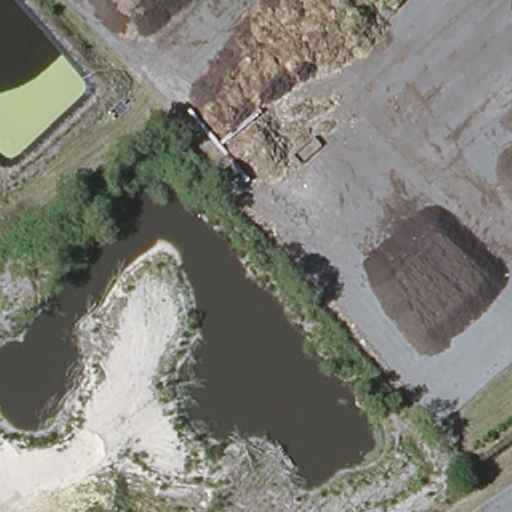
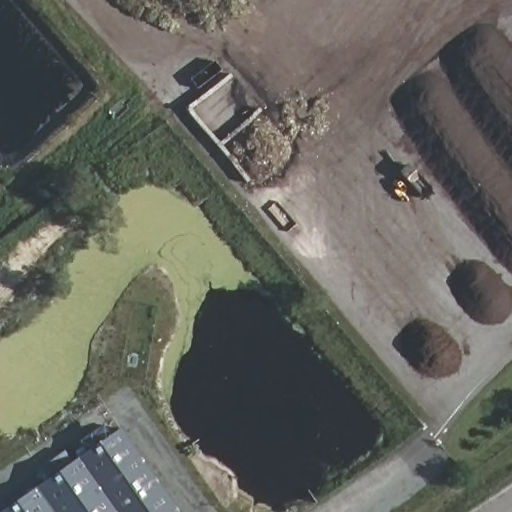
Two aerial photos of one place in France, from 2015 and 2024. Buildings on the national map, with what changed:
new [(188,512),(9,512),(129,428),(188,512)]

